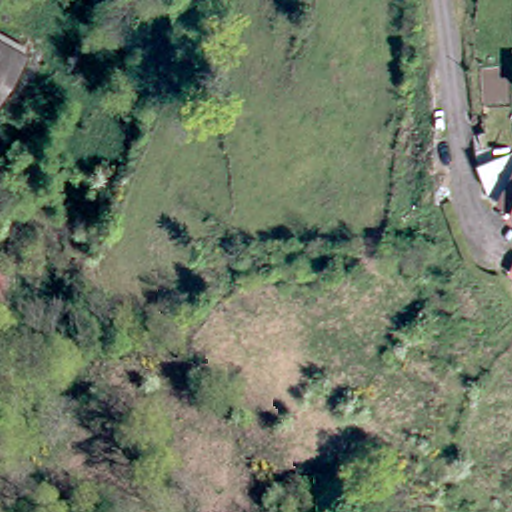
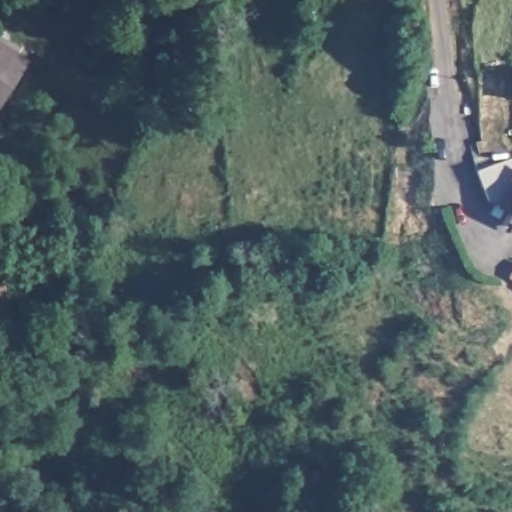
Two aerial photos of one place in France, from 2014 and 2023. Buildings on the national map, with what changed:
unchanged [(20,56),(0,88),(0,44),(20,56)]
unchanged [(512,203),(512,218),(505,215),(512,203)]

